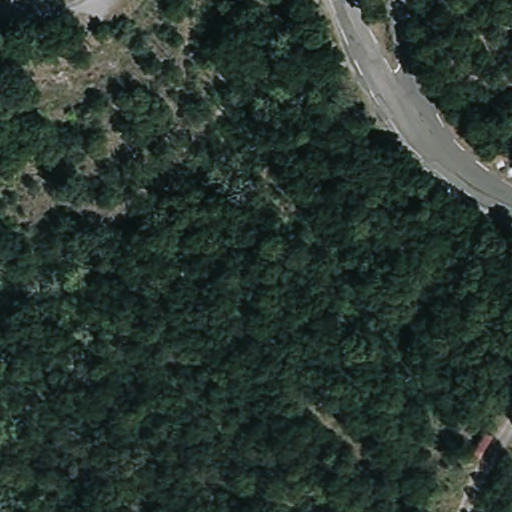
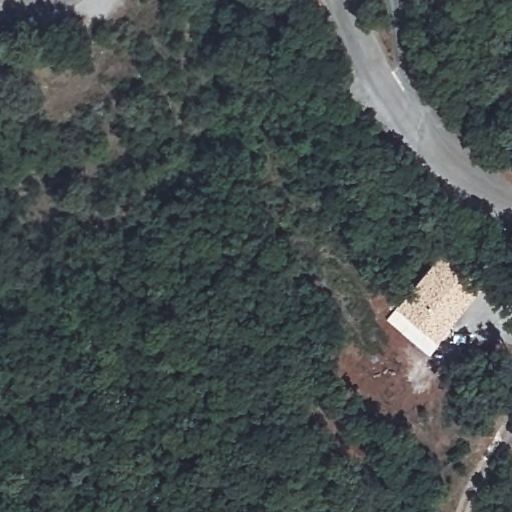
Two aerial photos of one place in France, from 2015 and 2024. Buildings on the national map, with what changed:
new [(396,308),(442,252),(483,284),(436,342),(396,308)]

